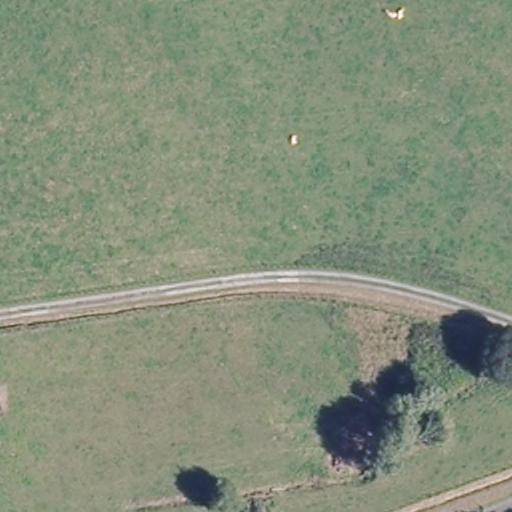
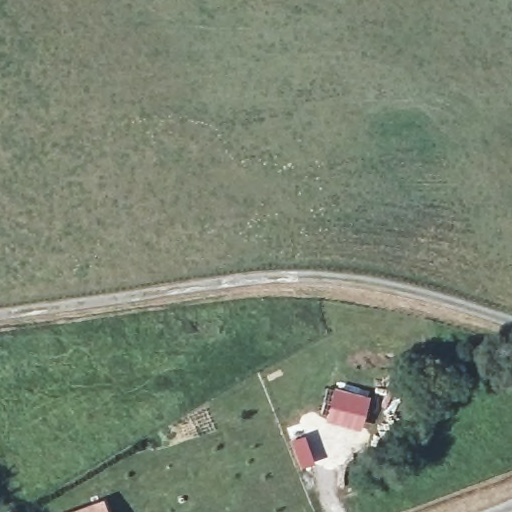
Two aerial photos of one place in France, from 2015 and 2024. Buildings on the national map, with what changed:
new [(370,395),(361,429),(325,420),(334,386),(370,395)]
new [(67,512),(102,498),(108,512),(67,512)]

